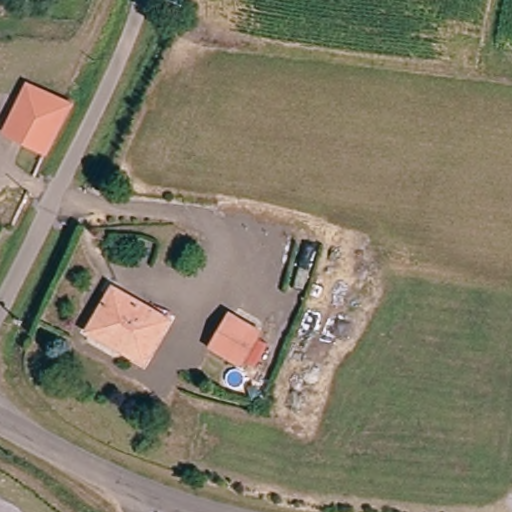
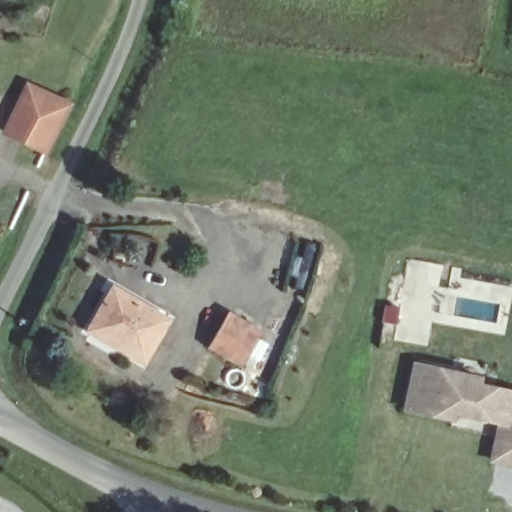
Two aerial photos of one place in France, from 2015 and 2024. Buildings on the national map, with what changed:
unchanged [(3,141),(16,108),(26,86),(75,101),(48,160),(3,141)]
unchanged [(116,294),(166,325),(138,364),(122,355),(126,349),(92,329),(116,294)]
unchanged [(232,321),(258,336),(241,363),(215,346),(232,321)]
new [(461,415),(459,423),(413,408),(423,364),(459,372),(488,379),(485,391),(496,394),(502,390),(512,392),(512,468),(497,465),(507,427),(461,415)]

